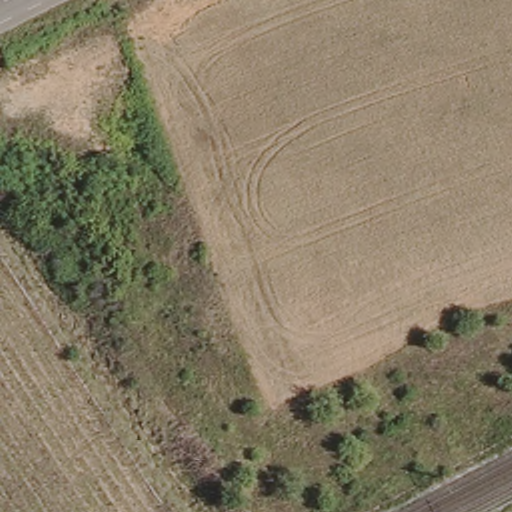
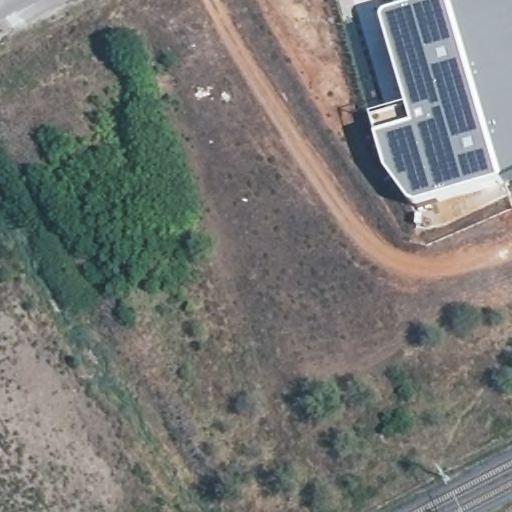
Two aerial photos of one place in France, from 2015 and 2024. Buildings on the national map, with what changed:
new [(408,108),(384,19),(442,0),(451,0),(481,94),(507,181),(431,207),(415,210),(407,200),(388,174),(372,120),(408,108)]
new [(507,181),(481,94),(451,0),(512,0),(512,179),(507,181)]

